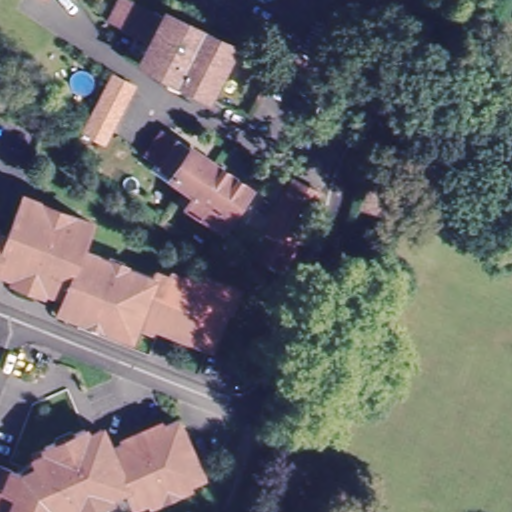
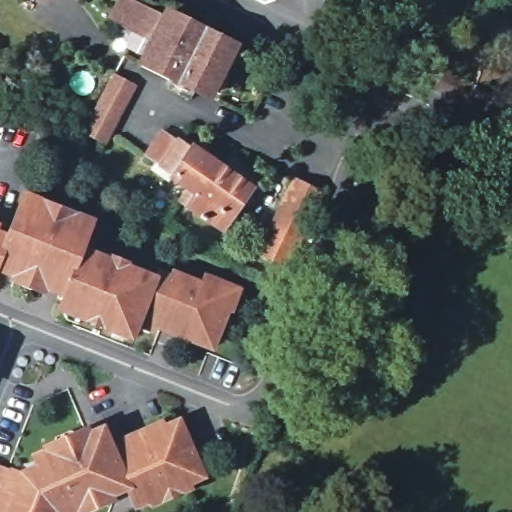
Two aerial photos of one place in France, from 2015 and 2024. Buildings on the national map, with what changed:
unchanged [(150,11),(164,18),(166,13),(233,47),(208,96),(141,62),(152,40),(140,34),(111,19),(120,0),(130,0),(150,11)]
unchanged [(134,86),(104,142),(85,132),(114,76),(134,86)]
unchanged [(220,218),(181,189),(190,176),(150,146),(167,121),(182,131),(183,130),(195,139),(195,138),(253,179),(232,207),(222,220),(220,218)]
unchanged [(321,194),(282,272),(255,253),(294,180),(321,194)]
unchanged [(19,199),(86,227),(81,239),(31,218),(9,269),(12,270),(10,276),(0,272),(0,242),(1,239),(19,199)]
unchanged [(189,341),(150,326),(150,329),(143,331),(130,326),(129,329),(112,322),(109,331),(75,317),(72,325),(60,320),(57,311),(60,302),(55,300),(58,295),(39,287),(36,293),(7,281),(10,276),(12,270),(9,269),(31,218),(81,239),(77,249),(105,261),(106,258),(121,265),(120,267),(148,279),(150,274),(165,280),(166,275),(195,288),(200,276),(234,290),(225,311),(221,310),(210,339),(206,348),(189,341)]
unchanged [(1,239),(0,242),(0,238),(1,239)]
unchanged [(125,488),(110,450),(124,445),(122,442),(162,424),(164,427),(179,420),(200,469),(205,480),(190,487),(150,504),(135,511),(130,500),(125,488)]
unchanged [(29,477),(39,473),(31,456),(45,450),(45,448),(85,430),(87,436),(101,429),(110,450),(125,488),(107,495),(110,502),(86,512),(79,512),(77,509),(69,512),(0,512),(0,466),(29,477)]

